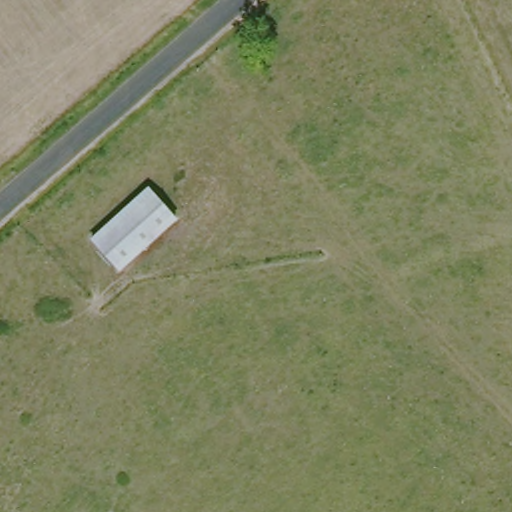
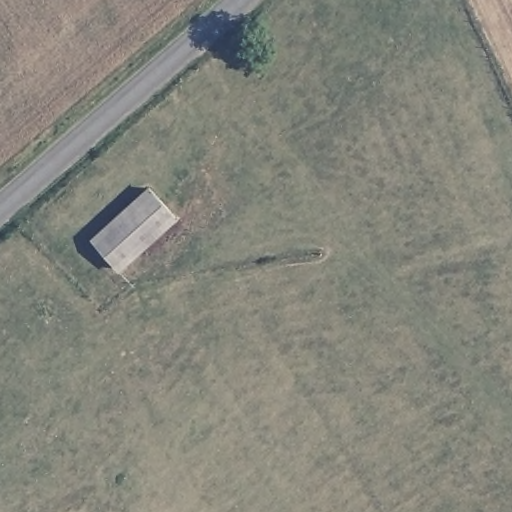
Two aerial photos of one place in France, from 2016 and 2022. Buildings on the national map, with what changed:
unchanged [(177,221),(119,271),(94,242),(151,191),(177,221)]

